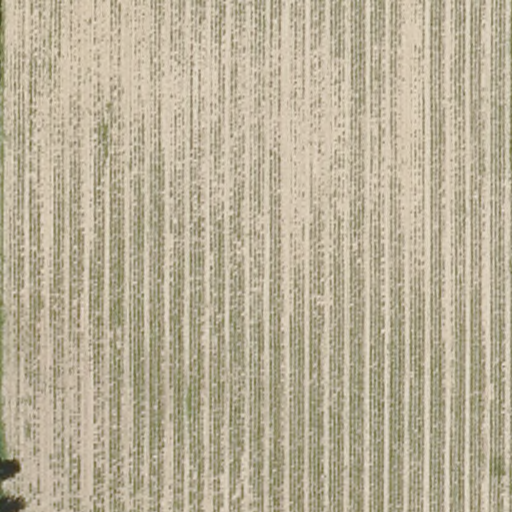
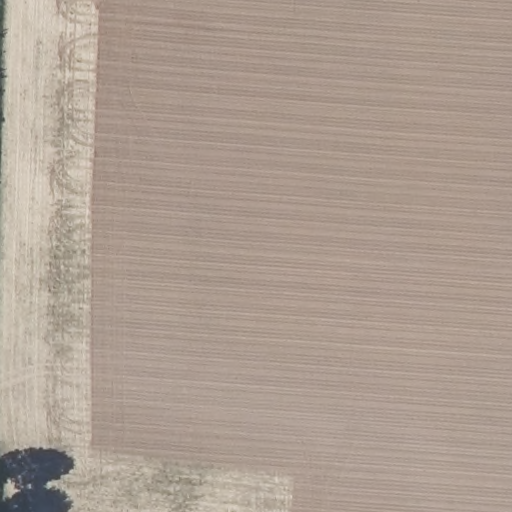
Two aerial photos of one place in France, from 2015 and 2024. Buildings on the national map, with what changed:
[]

